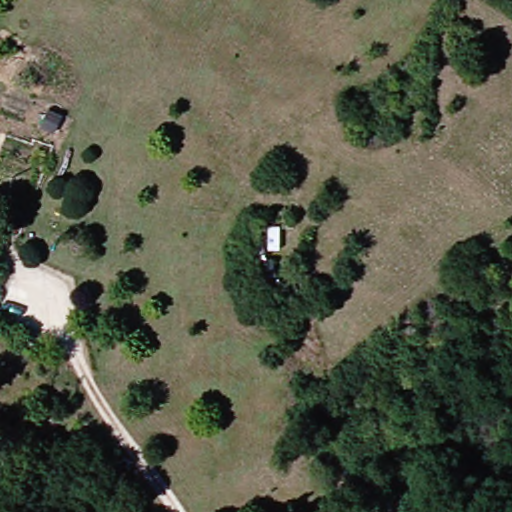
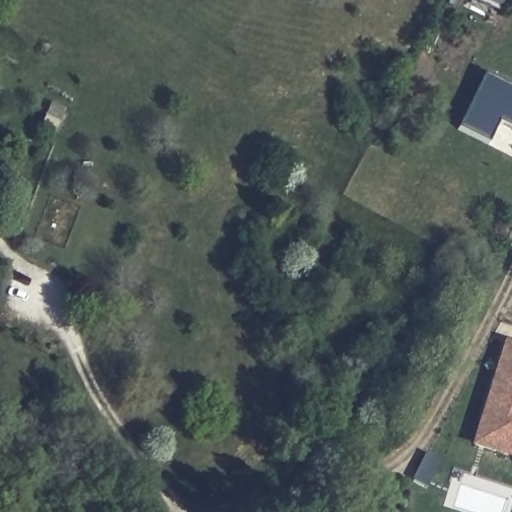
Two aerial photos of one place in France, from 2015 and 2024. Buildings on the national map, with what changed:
new [(497,123),(487,144),(458,131),(484,76),(512,90),(512,131),(497,123)]
new [(501,343),(512,347),(512,458),(469,443),(477,418),(495,362),(501,343)]

